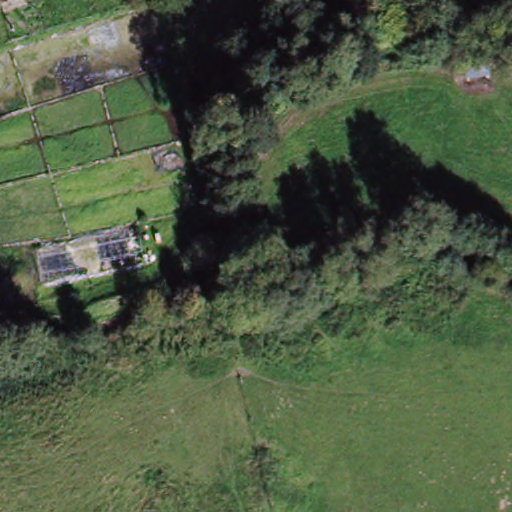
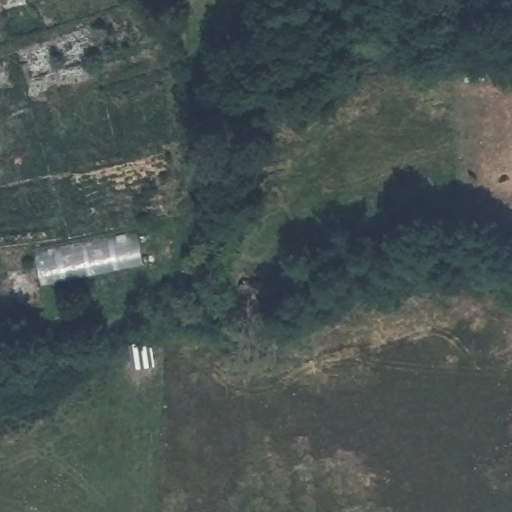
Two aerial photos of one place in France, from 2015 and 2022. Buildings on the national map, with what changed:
unchanged [(0,0),(37,0),(38,3),(0,16),(0,0)]
unchanged [(140,236),(148,268),(35,289),(31,258),(140,236)]

